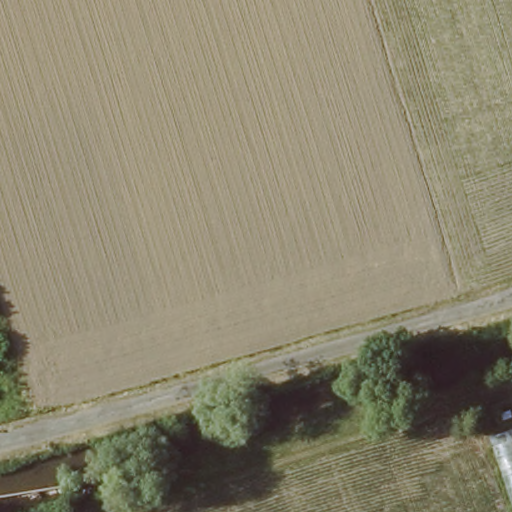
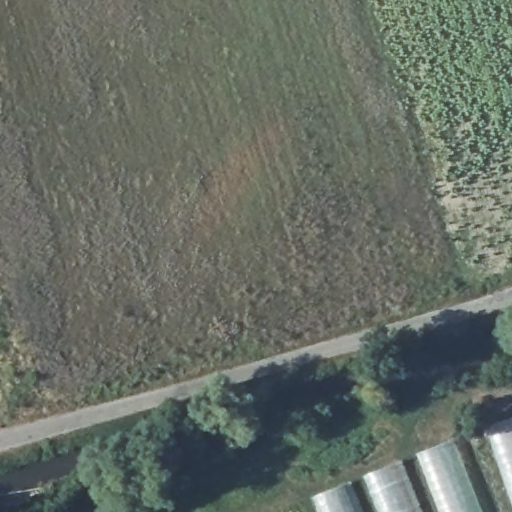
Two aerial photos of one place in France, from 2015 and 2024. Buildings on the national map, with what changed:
new [(491,446),(512,438),(512,505),(491,446)]
new [(317,497),(455,441),(482,512),(323,512),(317,497)]

